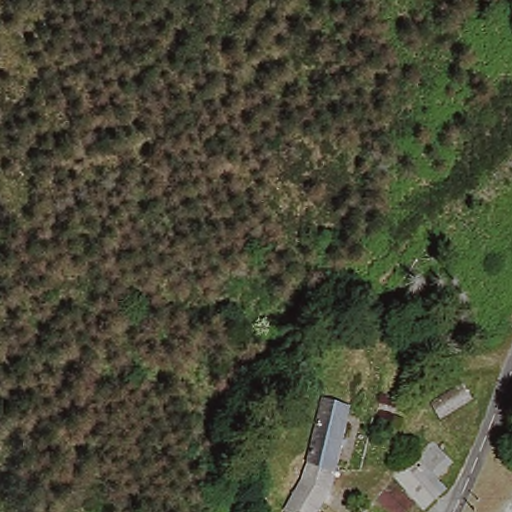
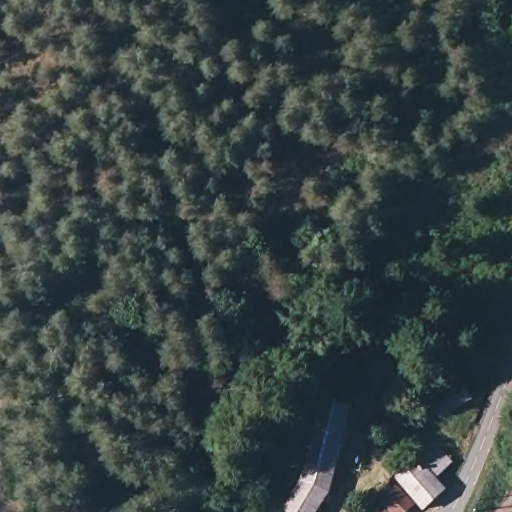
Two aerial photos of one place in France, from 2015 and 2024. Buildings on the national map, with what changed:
unchanged [(442,417),(440,420),(430,407),(458,382),(469,397),(442,417)]
unchanged [(336,467),(310,461),(316,421),(320,398),(348,402),(336,467)]
unchanged [(422,511),(415,506),(394,482),(390,477),(408,458),(413,461),(424,449),(442,468),(432,480),(443,490),(422,511)]
unchanged [(319,512),(291,512),(302,492),(310,461),(336,467),(334,480),(327,501),(319,512)]
unchanged [(409,512),(381,512),(373,503),(390,486),(411,509),(409,512)]

